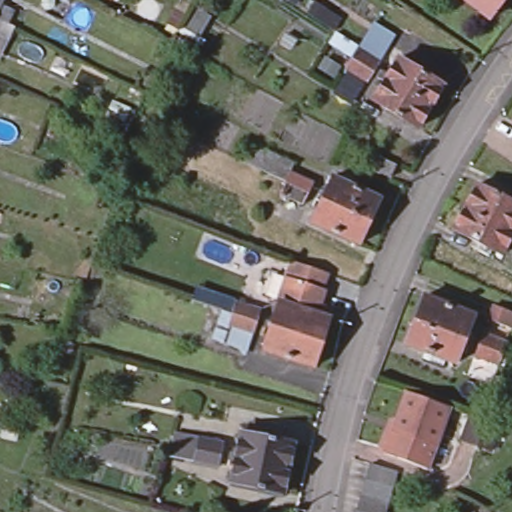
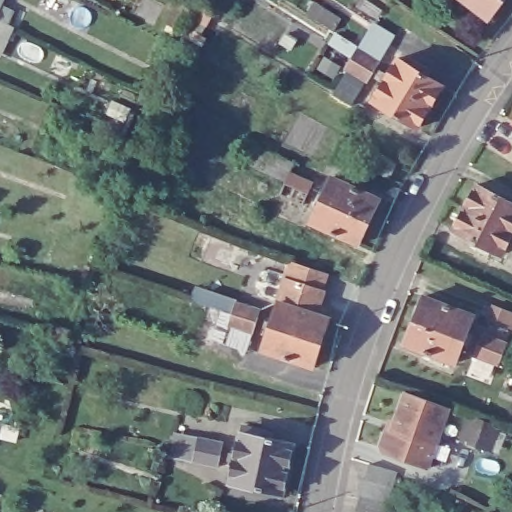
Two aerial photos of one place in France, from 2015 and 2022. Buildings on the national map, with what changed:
unchanged [(460,0),(505,0),(488,22),(460,0)]
unchanged [(451,79),(421,132),(368,102),(399,49),(451,79)]
unchanged [(512,232),(504,252),(454,232),(477,175),(512,190),(512,232)]
unchanged [(385,202),(361,252),(308,225),(331,176),(385,202)]
unchanged [(331,275),(319,313),(286,302),(298,262),(331,275)]
unchanged [(476,314),(455,367),(406,347),(426,295),(476,314)]
unchanged [(247,302),(269,310),(286,302),(269,350),(261,335),(239,327),(243,315),(247,302)]
unchanged [(319,313),(334,318),(326,341),(318,367),(269,350),(286,302),(319,313)]
unchanged [(397,427),(399,427),(401,422),(397,421),(406,389),(451,405),(429,467),(388,451),(384,444),(389,430),(397,427)]
unchanged [(294,445),(284,493),(230,482),(243,433),(294,445)]
unchanged [(224,443),(218,468),(193,462),(199,437),(224,443)]
unchanged [(399,475),(389,512),(361,512),(373,467),(399,475)]

